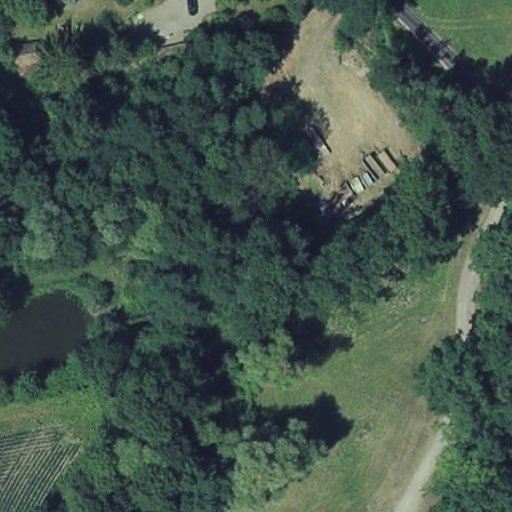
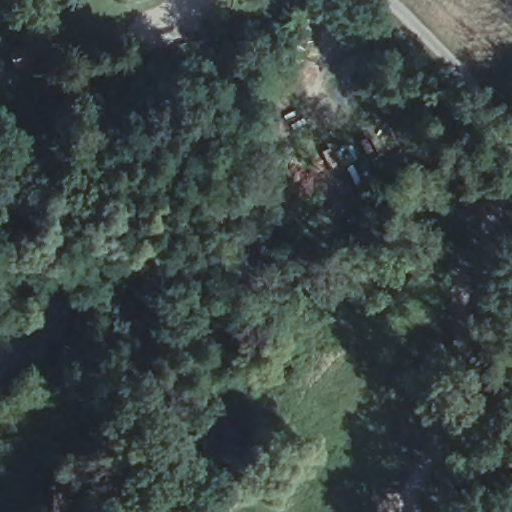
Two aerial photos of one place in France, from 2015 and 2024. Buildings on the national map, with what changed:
unchanged [(5,49),(29,44),(34,70),(10,75),(5,49)]
unchanged [(250,392),(257,411),(177,432),(172,413),(250,392)]

